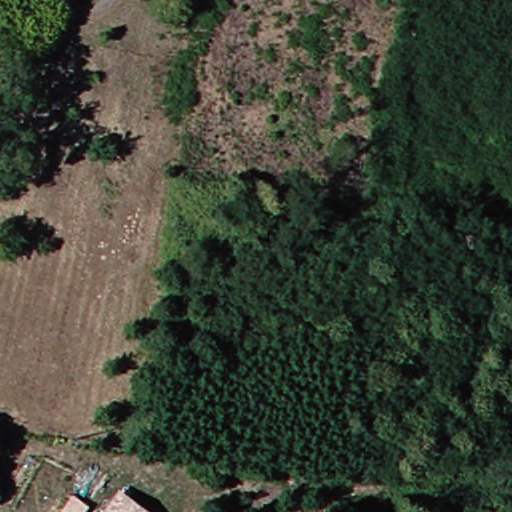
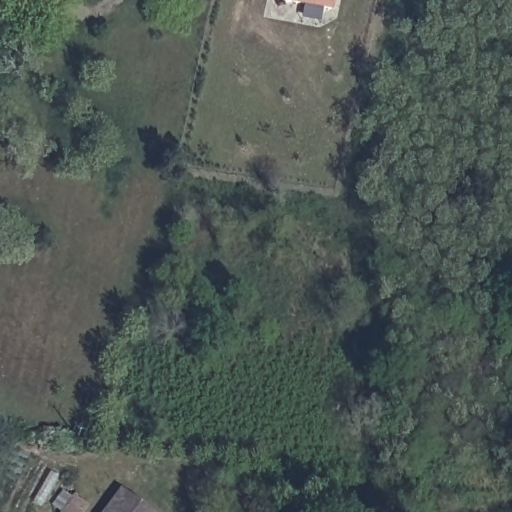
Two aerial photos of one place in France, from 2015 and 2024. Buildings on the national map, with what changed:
new [(336,8),(296,0),(338,0),(336,8)]
unchanged [(152,512),(103,512),(121,489),(152,512)]
unchanged [(90,506),(85,512),(62,512),(74,495),(90,506)]

